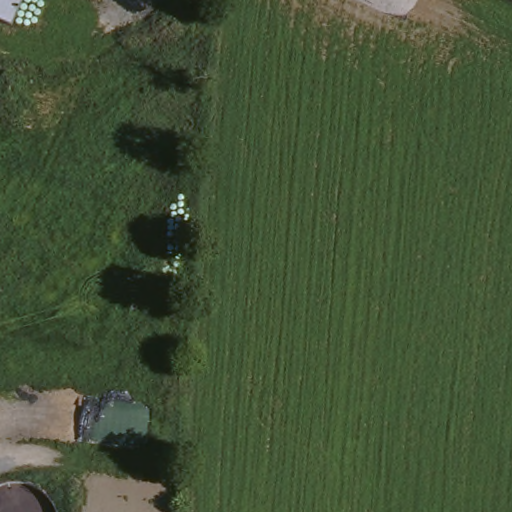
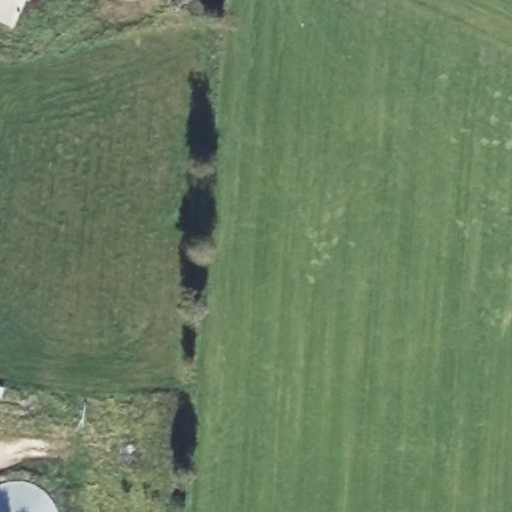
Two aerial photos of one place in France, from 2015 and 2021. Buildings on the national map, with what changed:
unchanged [(11,26),(0,21),(0,0),(22,0),(11,26)]

